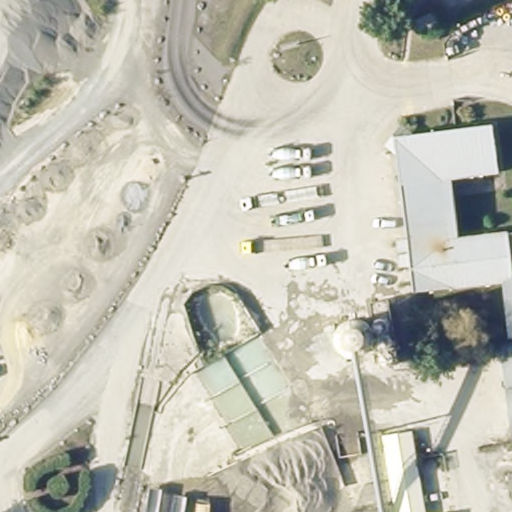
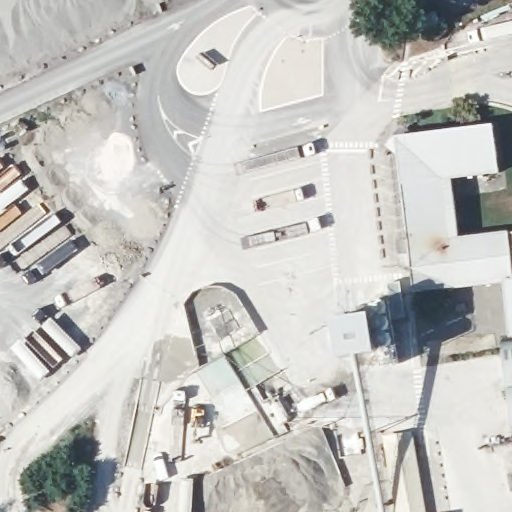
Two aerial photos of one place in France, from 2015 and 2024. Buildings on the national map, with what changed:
unchanged [(495,231),(512,229),(512,277),(421,288),(417,259),(410,260),(408,240),(415,239),(407,175),(402,133),(499,121),(505,168),(458,174),(459,189),(464,222),(465,235),(495,231)]
unchanged [(392,299),(402,363),(385,365),(374,302),(392,299)]
new [(373,314),(379,355),(341,360),(333,321),(373,314)]
unchanged [(512,336),(512,409),(503,338),(512,336)]
unchanged [(431,512),(393,512),(382,428),(417,428),(431,512)]

